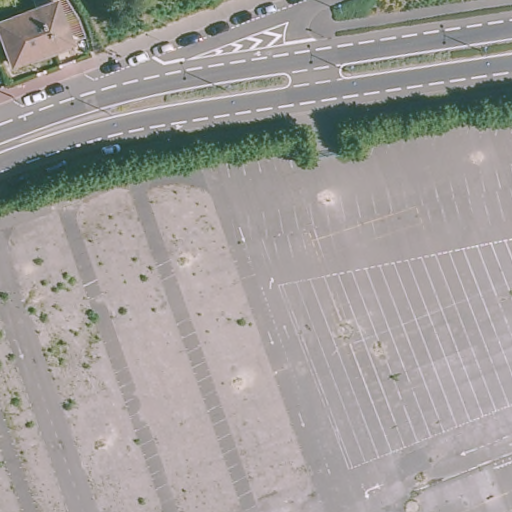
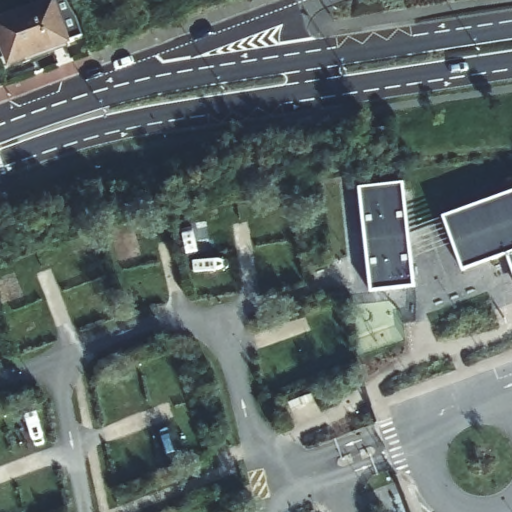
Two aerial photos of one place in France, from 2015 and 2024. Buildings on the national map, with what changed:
unchanged [(68,42),(10,63),(0,36),(0,21),(30,10),(27,0),(52,0),(68,42)]
new [(370,292),(360,189),(404,183),(415,286),(370,292)]
new [(507,254),(463,270),(445,216),(512,192),(512,269),(507,254)]

